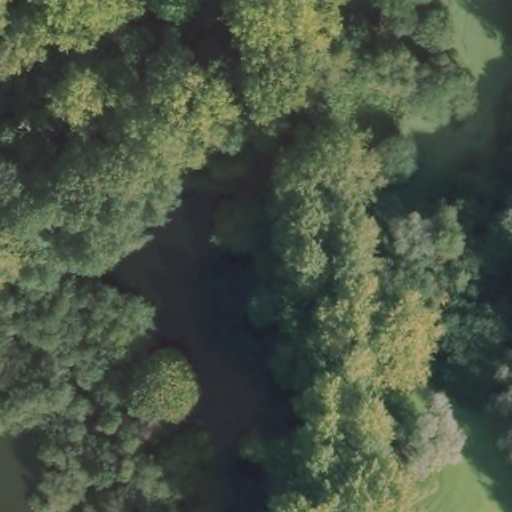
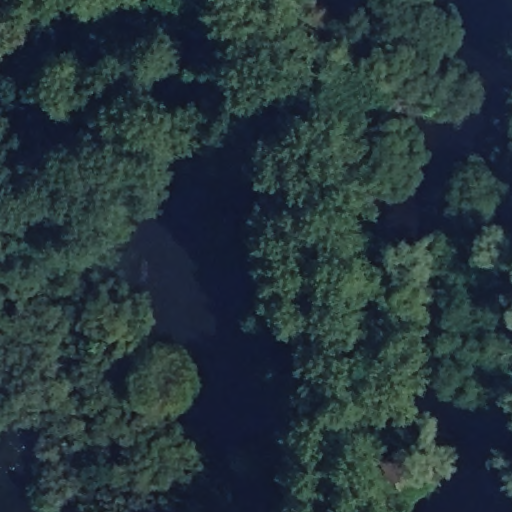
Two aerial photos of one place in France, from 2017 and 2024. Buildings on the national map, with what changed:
unchanged [(406,476),(382,484),(376,460),(398,454),(406,476)]

